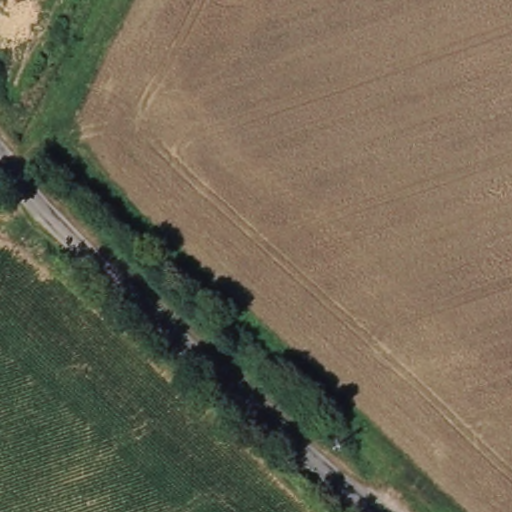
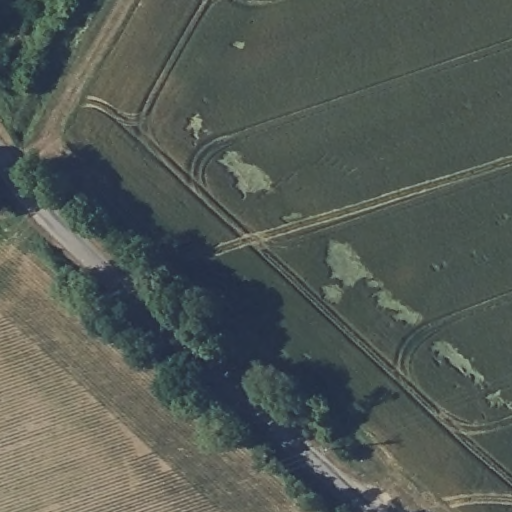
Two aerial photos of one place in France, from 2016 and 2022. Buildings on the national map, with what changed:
[]

